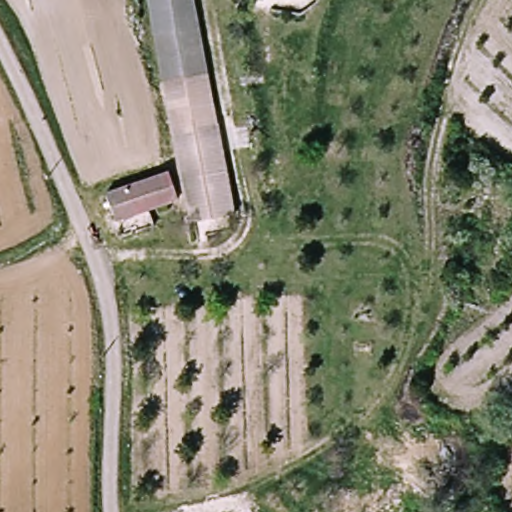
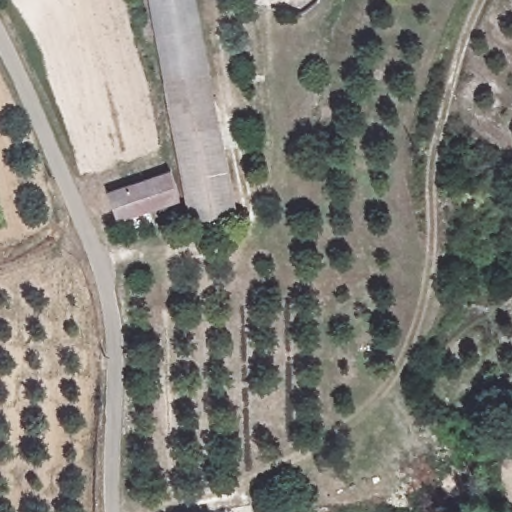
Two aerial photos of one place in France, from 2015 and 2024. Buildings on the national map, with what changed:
unchanged [(202,49),(177,56),(160,60),(149,0),(193,0),(202,49)]
unchanged [(215,123),(216,122),(232,213),(227,214),(188,221),(187,221),(184,206),(185,206),(176,152),(167,104),(160,60),(177,56),(202,49),(213,113),(215,123)]
unchanged [(167,169),(176,197),(113,217),(104,190),(167,169)]

